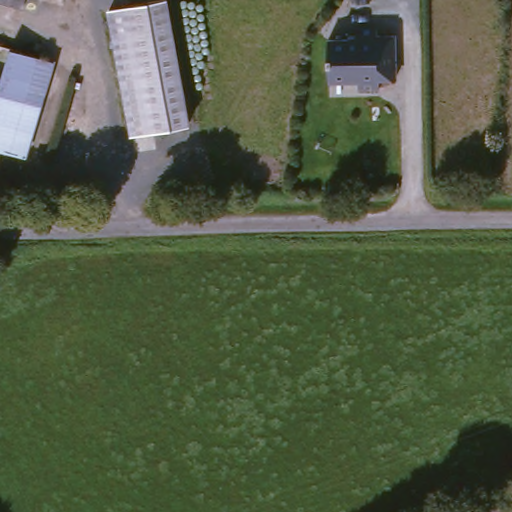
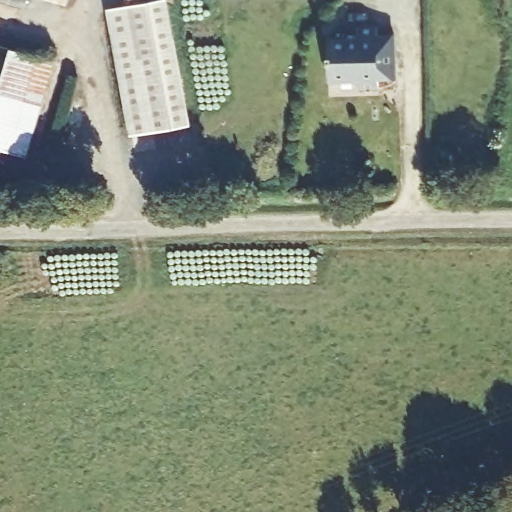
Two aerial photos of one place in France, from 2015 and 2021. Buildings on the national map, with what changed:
unchanged [(0,19),(0,0),(22,0),(15,25),(0,19)]
unchanged [(107,10),(162,0),(168,0),(190,124),(131,136),(107,10)]
unchanged [(354,96),(353,85),(322,87),(319,47),(350,46),(352,35),(371,33),(371,41),(388,40),(392,83),(375,84),(374,96),(354,96)]
unchanged [(22,169),(0,162),(0,70),(5,56),(51,69),(22,169)]

